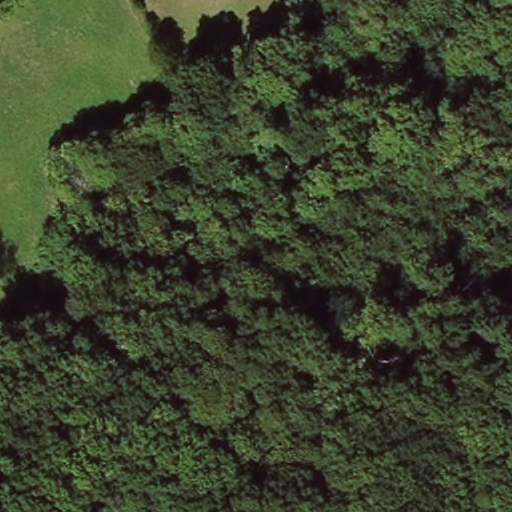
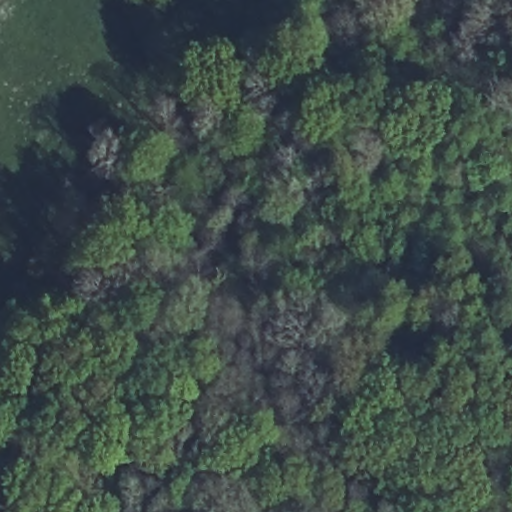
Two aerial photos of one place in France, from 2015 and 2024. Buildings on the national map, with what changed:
[]

